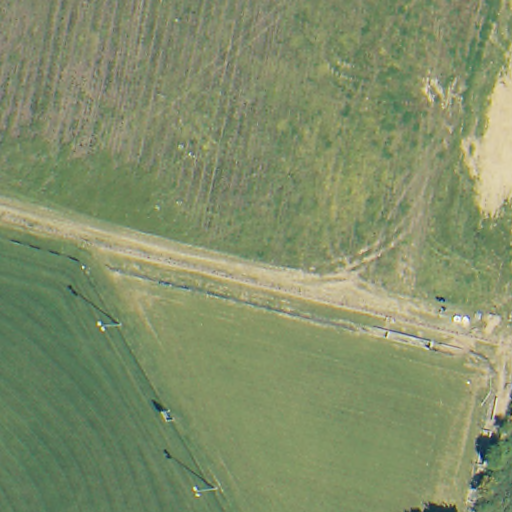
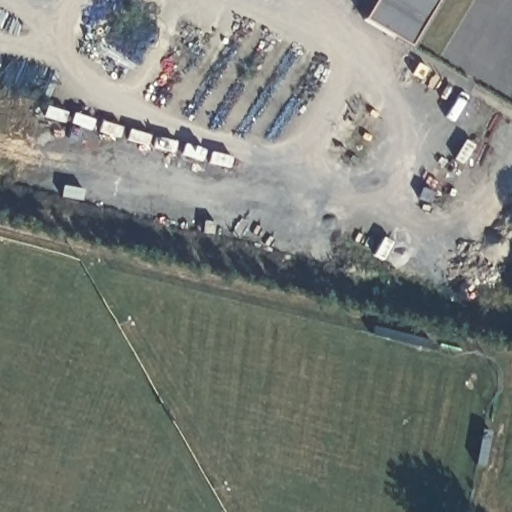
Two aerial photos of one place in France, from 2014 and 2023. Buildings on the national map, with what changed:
new [(410,47),(364,19),(376,0),(438,0),(410,47)]

